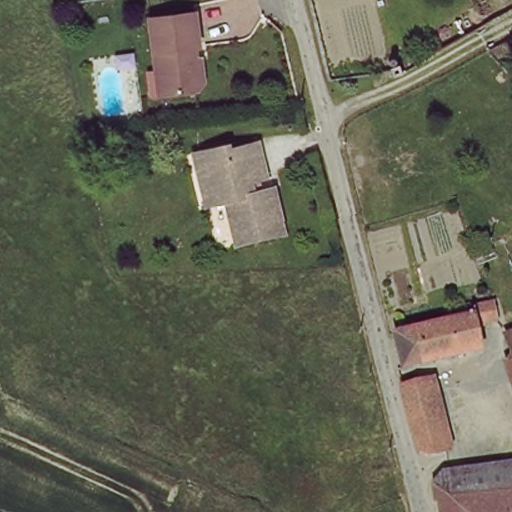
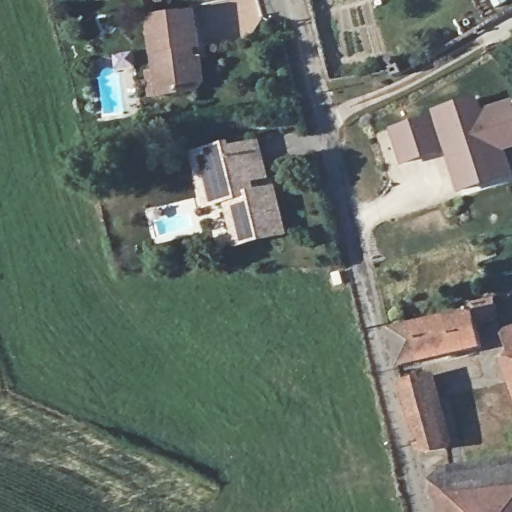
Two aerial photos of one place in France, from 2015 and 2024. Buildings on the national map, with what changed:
unchanged [(198,17),(202,51),(197,51),(199,65),(205,65),(207,85),(199,95),(163,98),(154,22),(198,17)]
new [(495,175),(461,186),(449,145),(405,157),(395,125),(439,112),(437,107),(477,95),(482,110),(512,100),(512,142),(503,145),(511,171),(495,175)]
unchanged [(207,206),(198,172),(194,153),(228,145),(229,149),(258,143),(267,177),(251,181),(254,194),(274,189),(283,233),(236,245),(227,200),(215,204),(207,206)]
unchanged [(397,328),(474,313),(470,300),(492,295),(499,316),(475,321),(482,351),(406,366),(397,328)]
unchanged [(512,334),(512,348),(508,335),(512,334)]
unchanged [(403,386),(432,382),(443,446),(421,450),(403,386)]
unchanged [(432,510),(430,487),(447,475),(512,463),(512,512),(448,512),(447,508),(432,510)]

